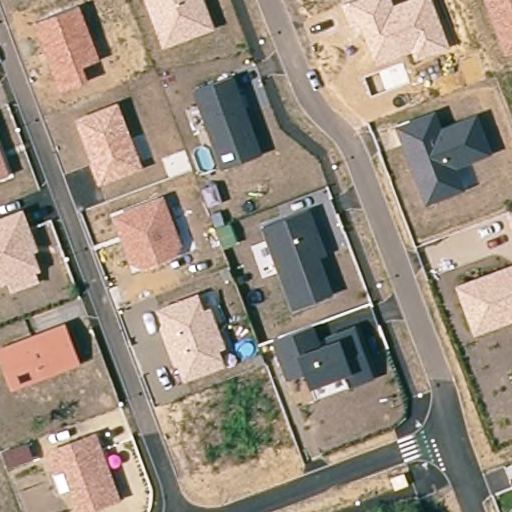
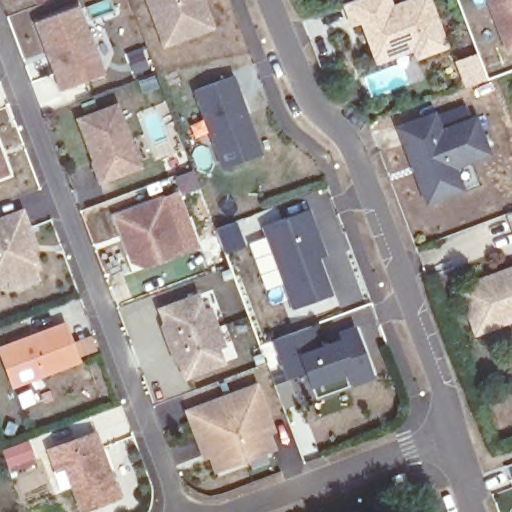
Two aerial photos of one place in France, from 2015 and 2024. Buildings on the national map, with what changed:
unchanged [(144,0),(205,0),(216,29),(162,48),(144,0)]
unchanged [(451,50),(415,63),(411,52),(374,64),(358,22),(349,25),(342,4),(353,0),(393,0),(394,4),(404,0),(433,0),(451,50)]
unchanged [(512,51),(506,53),(486,0),(512,0),(512,51)]
unchanged [(34,21),(80,5),(100,59),(84,66),(89,80),(59,91),(34,21)]
unchanged [(192,89),(235,74),(262,153),(221,169),(192,89)]
unchanged [(75,118),(119,102),(142,168),(98,184),(75,118)]
unchanged [(395,125),(435,109),(442,126),(477,113),(492,153),(457,168),(466,189),(426,204),(395,125)]
unchanged [(10,173),(0,177),(0,146),(10,173)]
unchanged [(186,252),(142,268),(129,261),(111,215),(164,195),(186,252)]
unchanged [(24,208),(39,249),(35,251),(42,269),(37,271),(40,281),(11,292),(7,283),(0,285),(0,217),(24,208)]
unchanged [(262,228),(310,209),(327,255),(322,258),(334,293),(291,308),(262,228)]
unchanged [(512,212),(512,233),(506,214),(512,212)]
unchanged [(453,285),(512,264),(512,321),(472,336),(453,285)]
unchanged [(156,308),(199,292),(205,307),(212,305),(227,347),(220,350),(225,365),(184,381),(156,308)]
unchanged [(0,359),(0,344),(66,321),(81,364),(11,389),(0,359)]
unchanged [(273,340),(313,326),(320,343),(326,341),(325,336),(356,324),(374,377),(315,398),(308,384),(305,373),(287,379),(273,340)]
new [(201,451),(187,415),(256,389),(269,425),(272,433),(266,435),(272,449),(215,471),(210,456),(204,459),(201,451)]
unchanged [(54,471),(47,449),(97,430),(121,497),(81,512),(79,512),(64,469),(54,471)]

